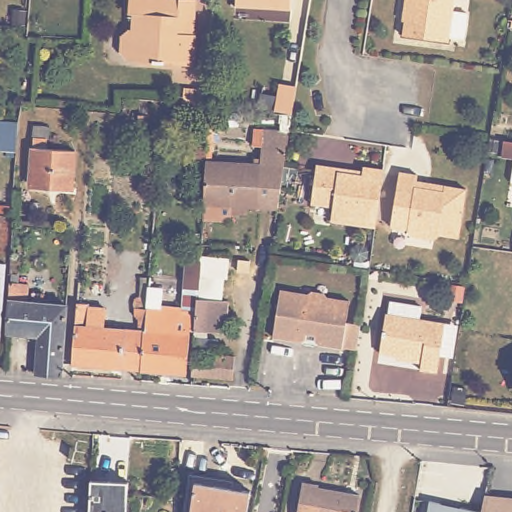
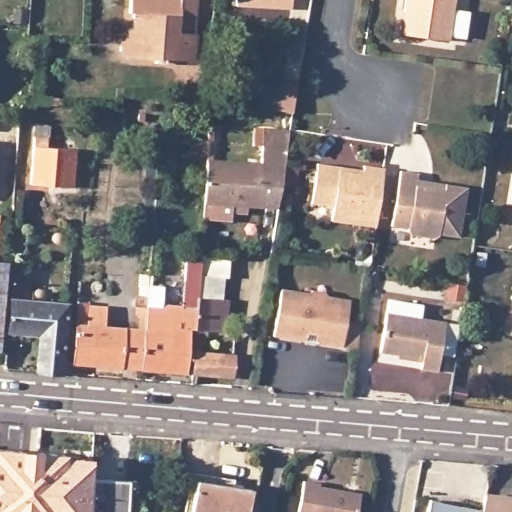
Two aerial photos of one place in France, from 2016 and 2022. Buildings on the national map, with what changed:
unchanged [(17,7),(7,6),(7,0),(17,0),(17,7)]
unchanged [(132,14),(128,14),(129,0),(166,0),(166,2),(173,3),(173,0),(194,0),(193,34),(195,34),(193,65),(172,64),(172,62),(163,62),(163,63),(152,63),(152,61),(126,60),(119,52),(120,37),(128,29),(131,30),(132,14)]
unchanged [(235,6),(235,0),(291,0),(291,9),(235,6)]
unchanged [(468,34),(453,32),(453,37),(407,31),(409,15),(412,13),(413,8),(408,7),(409,0),(458,0),(457,7),(472,9),(468,34)]
unchanged [(13,26),(0,25),(0,10),(15,12),(13,26)]
unchanged [(274,111),(279,84),(296,87),(292,114),(274,111)]
unchanged [(183,88),(207,90),(206,105),(182,103),(183,88)]
unchanged [(16,147),(0,145),(0,115),(18,117),(16,147)]
unchanged [(26,181),(29,122),(44,123),(42,144),(71,146),(68,184),(26,181)]
unchanged [(253,153),(259,153),(260,141),(251,141),(252,124),(289,127),(277,203),(254,201),(254,209),(230,208),(230,216),(202,214),(205,157),(207,128),(213,128),(213,157),(252,160),(253,153)]
unchanged [(506,151),(509,135),(512,136),(512,151),(506,151)]
unchanged [(388,159),(380,217),(336,211),(338,197),(316,194),(321,154),(344,158),(367,161),(368,156),(388,159)]
unchanged [(468,228),(449,225),(448,226),(444,230),(420,226),(417,221),(418,220),(400,217),(409,166),(427,169),(425,180),(436,182),(436,179),(453,181),(454,179),(475,182),(468,228)]
unchanged [(0,207),(0,199),(13,200),(13,208),(0,207)]
unchanged [(362,261),(356,260),(352,255),(353,248),(359,244),(365,245),(369,251),(368,257),(362,261)]
unchanged [(145,303),(145,301),(146,281),(161,282),(160,299),(182,302),(184,255),(199,256),(198,271),(194,327),(190,327),(186,370),(141,366),(144,327),(145,306),(145,303)]
unchanged [(39,332),(7,330),(10,297),(8,297),(10,258),(10,256),(11,256),(18,256),(16,278),(27,279),(26,297),(66,300),(61,370),(36,368),(39,332)]
unchanged [(0,331),(0,257),(6,258),(0,331)]
unchanged [(223,273),(222,287),(219,287),(218,295),(227,295),(225,328),(207,327),(206,333),(194,332),(194,327),(198,271),(223,273)]
unchanged [(344,296),(341,317),(356,320),(352,345),(337,342),(337,343),(313,339),(310,335),(301,334),(297,337),(268,332),(275,285),(303,289),(306,286),(318,288),(321,292),(344,296)]
unchanged [(447,299),(450,285),(463,287),(461,301),(447,299)]
unchanged [(442,363),(425,360),(426,350),(384,343),(390,304),(392,304),(394,291),(426,296),(424,309),(450,313),(442,363)]
unchanged [(141,366),(71,361),(76,299),(88,300),(87,304),(104,305),(103,324),(136,326),(138,305),(133,305),(133,302),(134,301),(134,300),(134,299),(135,298),(136,298),(136,297),(138,297),(139,297),(140,297),(141,297),(143,298),(144,298),(144,299),(145,300),(145,301),(145,303),(145,306),(144,327),(141,366)]
unchanged [(191,371),(193,349),(234,352),(233,374),(191,371)]
new [(0,512),(0,447),(65,453),(64,457),(91,459),(91,480),(89,512),(0,512)]
unchanged [(126,512),(89,512),(91,480),(128,482),(126,512)]
unchanged [(247,512),(189,512),(194,481),(250,490),(247,512)]
unchanged [(318,486),(317,488),(359,496),(355,512),(296,512),(302,483),(318,486)]
unchanged [(512,494),(512,512),(480,512),(484,492),(512,494)]
unchanged [(442,512),(425,512),(426,509),(442,512)]

